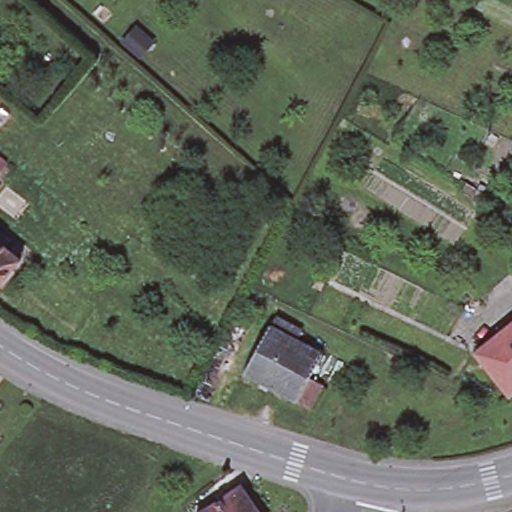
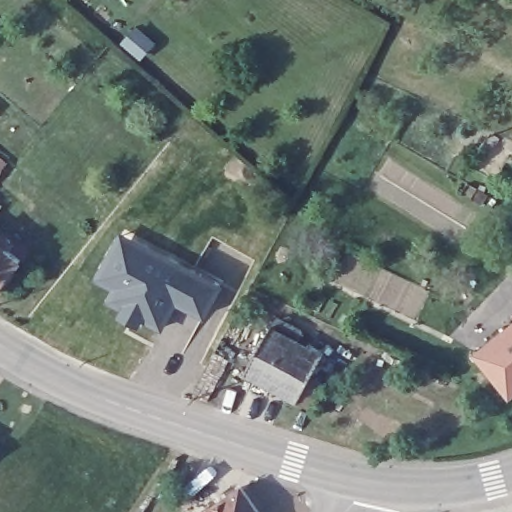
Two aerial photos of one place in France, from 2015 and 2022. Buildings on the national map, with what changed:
new [(206,318),(177,303),(164,330),(144,319),(141,324),(118,311),(121,306),(107,299),(115,287),(95,278),(120,228),(224,284),(206,318)]
unchanged [(4,252),(20,265),(0,289),(0,237),(10,245),(4,252)]
unchanged [(512,324),(512,394),(510,396),(475,353),(512,324)]
unchanged [(315,413),(302,407),(250,378),(275,330),(328,358),(315,382),(327,388),(315,413)]
unchanged [(241,486),(258,512),(201,512),(241,486)]

